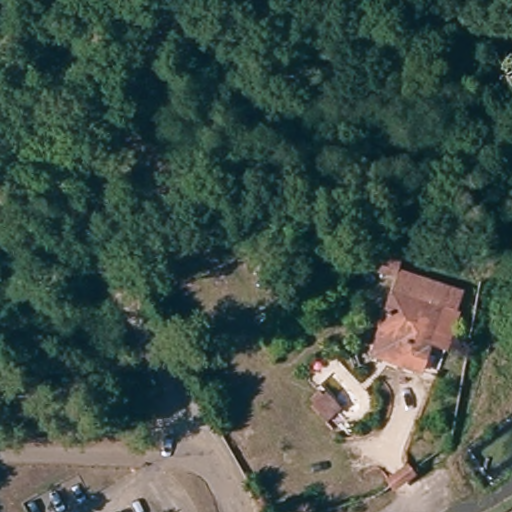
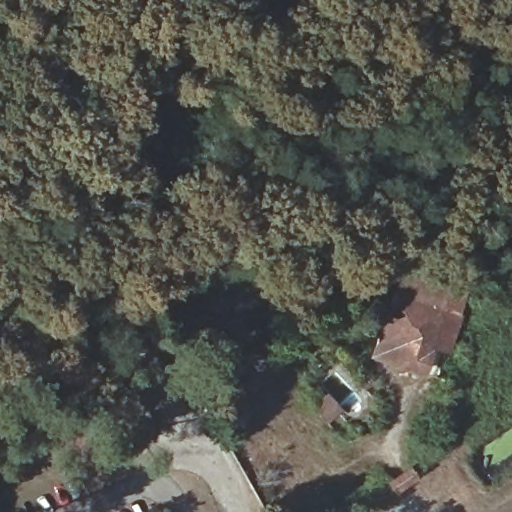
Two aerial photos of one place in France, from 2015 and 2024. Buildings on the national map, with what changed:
unchanged [(410,264),(405,280),(373,269),(378,254),(410,264)]
unchanged [(378,350),(393,314),(385,309),(394,283),(414,290),(422,270),(462,283),(428,370),(378,350)]

